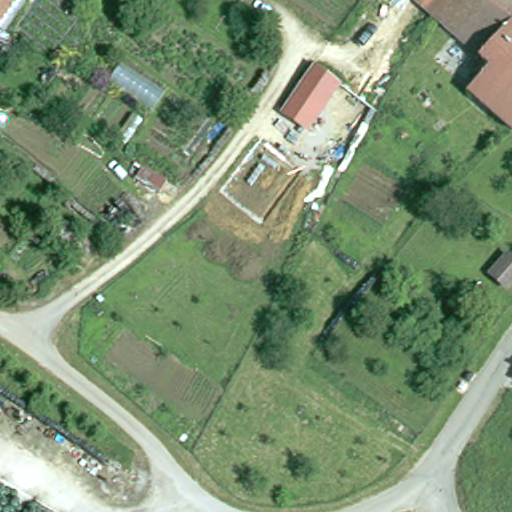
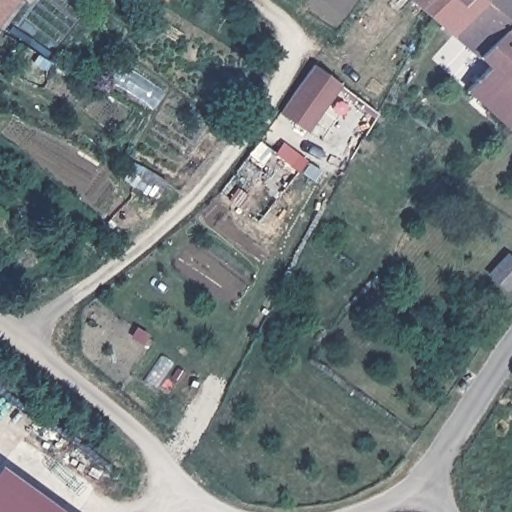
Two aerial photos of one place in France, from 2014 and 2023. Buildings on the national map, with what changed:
unchanged [(17,5),(11,13),(7,10),(0,19),(0,0),(14,0),(12,1),(17,5)]
unchanged [(408,0),(438,0),(425,15),(408,0)]
unchanged [(438,0),(452,0),(458,5),(462,0),(512,0),(512,17),(511,19),(475,58),(425,15),(438,0)]
unchanged [(452,0),(462,0),(458,5),(452,0)]
unchanged [(512,19),(512,125),(508,130),(462,89),(484,66),(475,58),(511,19),(512,19)]
unchanged [(341,83),(308,130),(280,111),(313,62),(341,83)]
unchanged [(512,260),(512,283),(506,290),(489,273),(507,255),(512,260)]
new [(0,466),(64,512),(0,512),(0,466)]

